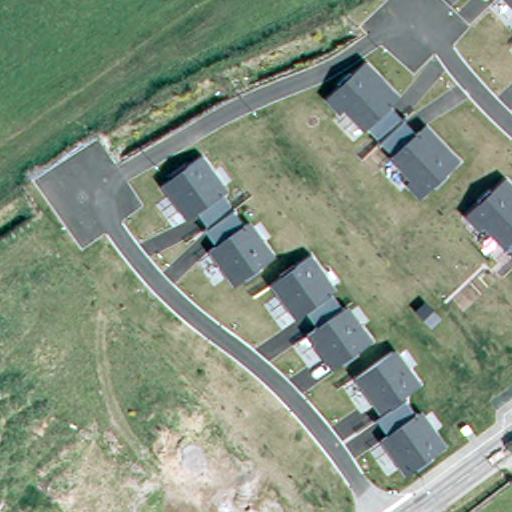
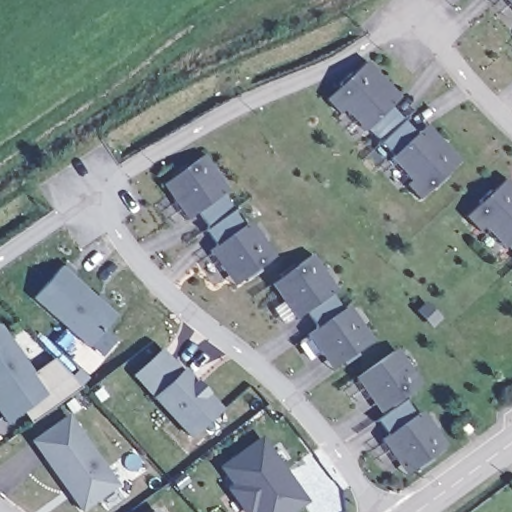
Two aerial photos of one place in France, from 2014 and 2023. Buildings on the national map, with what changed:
unchanged [(507,0),(512,0),(512,5),(507,0)]
unchanged [(402,96),(394,106),(420,131),(429,122),(462,160),(422,195),(405,179),(407,177),(389,158),(392,155),(345,109),(340,116),(326,100),(367,61),(402,96)]
unchanged [(230,191),(223,195),(245,225),(252,220),(277,257),(235,286),(210,250),(215,244),(205,229),(207,226),(197,212),(188,219),(163,184),(204,155),(230,191)]
unchanged [(512,183),(512,251),(508,247),(505,250),(485,229),(482,232),(467,214),(507,178),(512,183)]
unchanged [(339,292),(334,295),(344,308),(350,304),(374,342),(335,369),(308,332),(316,327),(307,313),(298,320),(272,283),(315,253),(339,292)]
new [(117,314),(90,346),(33,299),(62,267),(117,314)]
new [(0,326),(48,393),(7,424),(0,413),(0,326)]
new [(184,370),(222,409),(192,439),(155,398),(132,376),(163,348),(184,370)]
unchanged [(423,385),(404,399),(417,415),(423,410),(448,444),(408,473),(383,438),(388,434),(377,420),(381,415),(355,378),(398,348),(423,385)]
new [(83,512),(32,442),(70,415),(120,485),(83,512)]
new [(262,436),(309,503),(296,512),(244,512),(227,490),(232,486),(220,467),(262,436)]
new [(153,512),(158,508),(161,512),(153,512)]

